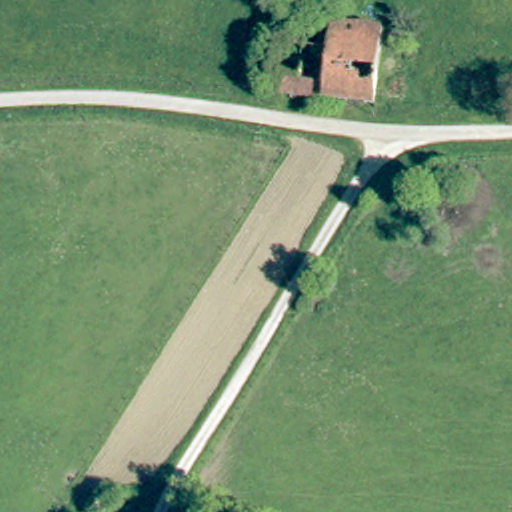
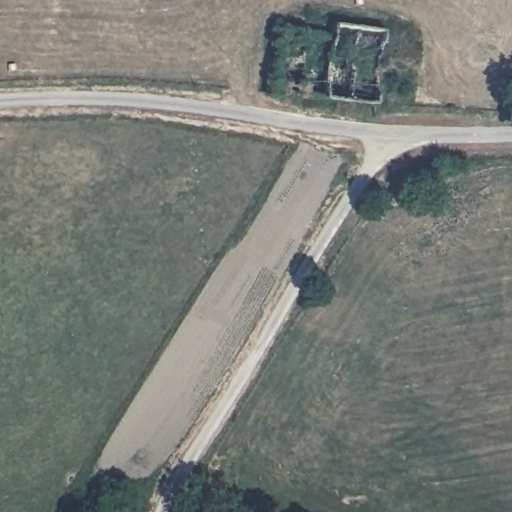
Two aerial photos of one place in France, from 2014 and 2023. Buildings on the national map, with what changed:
unchanged [(392,37),(383,110),(332,104),(332,93),(336,40),(336,30),(392,37)]

